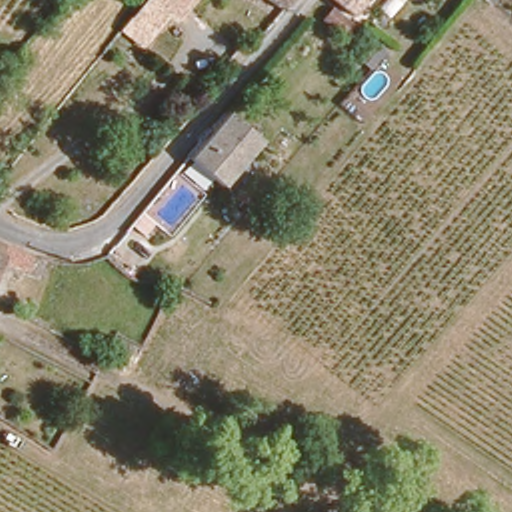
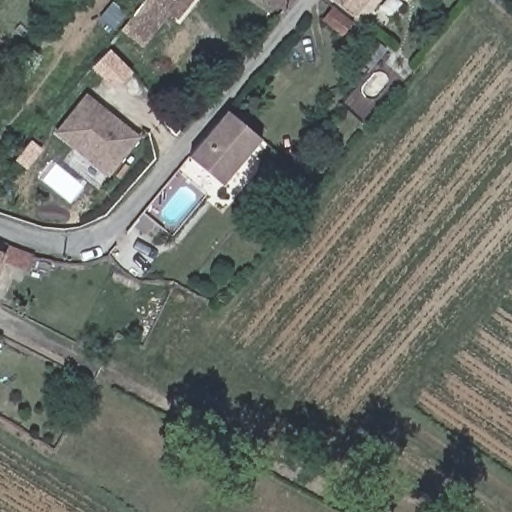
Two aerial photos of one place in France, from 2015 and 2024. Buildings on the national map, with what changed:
unchanged [(190,0),(179,16),(157,0),(190,0)]
unchanged [(278,0),(287,0),(284,4),(278,0)]
unchanged [(345,0),(364,0),(357,9),(345,0)]
unchanged [(356,19),(346,33),(325,17),(337,4),(356,19)]
unchanged [(151,19),(144,29),(133,23),(143,11),(151,19)]
new [(86,94),(141,139),(109,178),(55,133),(86,94)]
unchanged [(244,105),(277,131),(240,179),(206,151),(244,105)]
unchanged [(4,256),(0,263),(0,242),(9,245),(4,256)]
unchanged [(170,327),(166,334),(161,332),(165,323),(170,327)]

